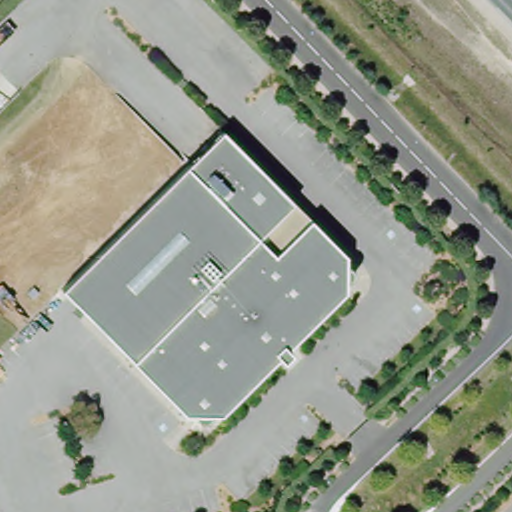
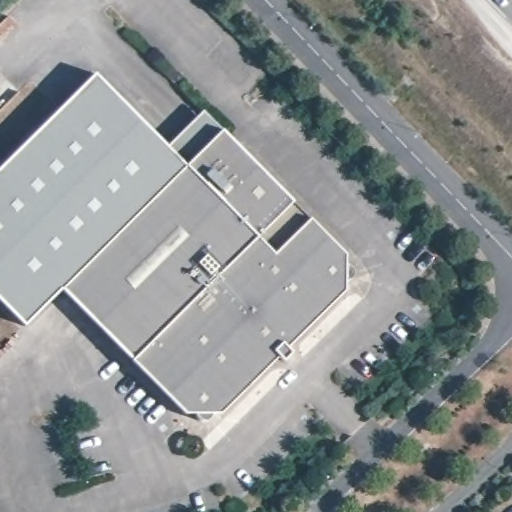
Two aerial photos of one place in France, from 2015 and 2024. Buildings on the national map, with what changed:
new [(62,288),(27,324),(0,298),(0,167),(95,74),(165,143),(203,111),(224,131),(62,288)]
unchanged [(62,288),(224,131),(365,274),(203,432),(62,288)]

